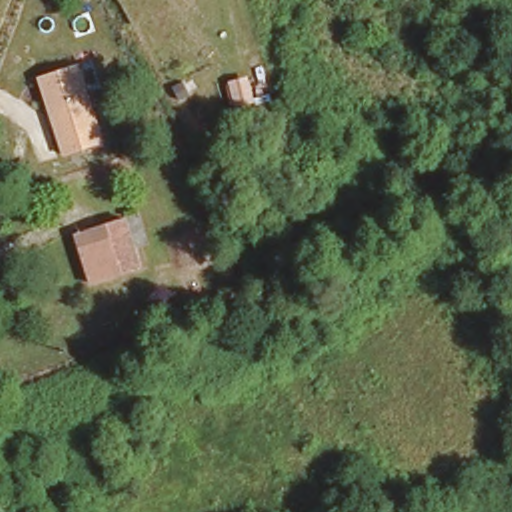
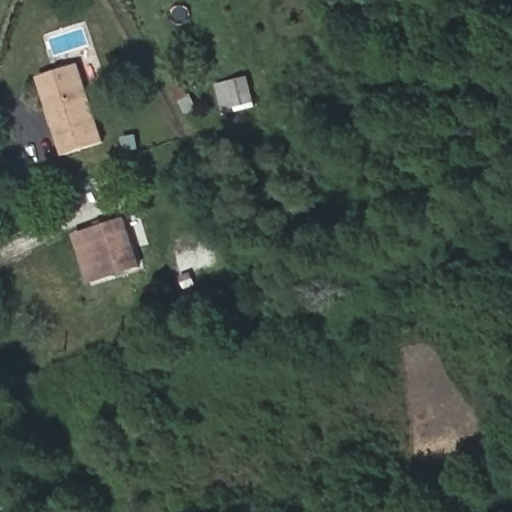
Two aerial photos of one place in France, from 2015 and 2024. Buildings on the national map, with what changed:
unchanged [(106,140),(64,155),(39,78),(81,64),(106,140)]
unchanged [(90,279),(77,229),(125,215),(138,265),(122,269),(106,274),(90,279)]

